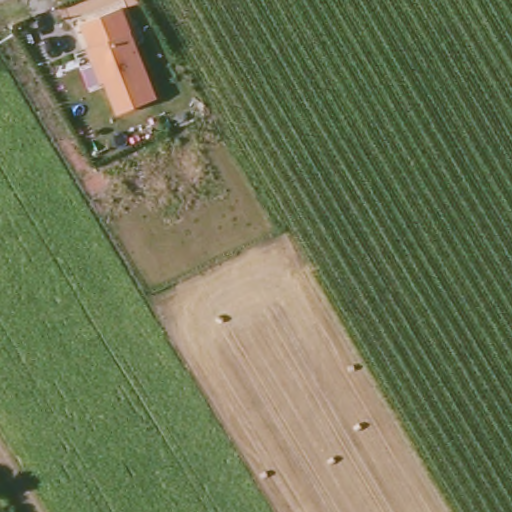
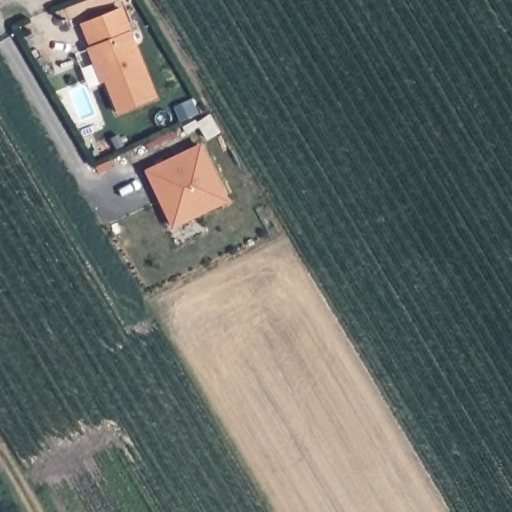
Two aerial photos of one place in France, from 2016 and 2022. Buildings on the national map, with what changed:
unchanged [(105,80),(100,83),(88,49),(91,47),(83,24),(125,8),(135,32),(159,99),(118,114),(105,80)]
new [(170,228),(145,171),(201,143),(228,200),(170,228)]

